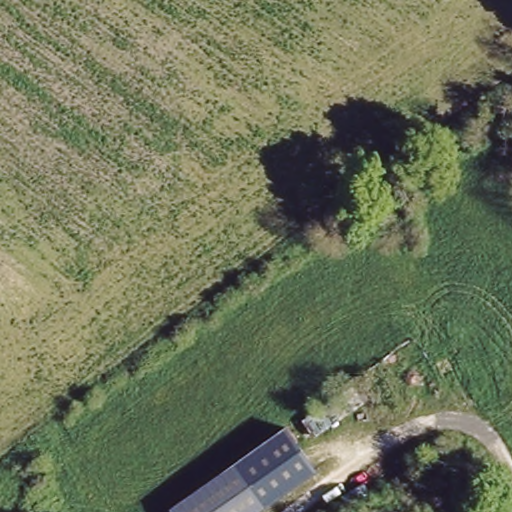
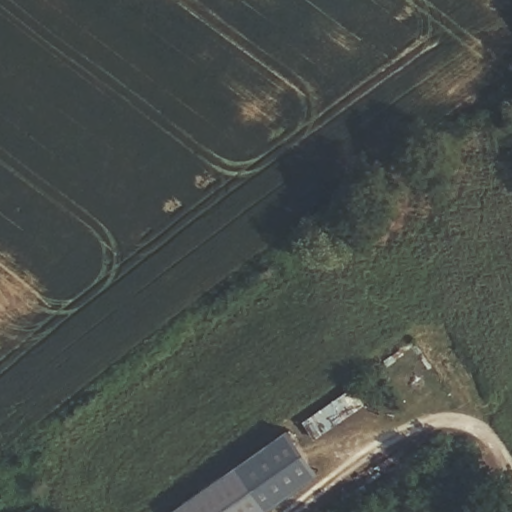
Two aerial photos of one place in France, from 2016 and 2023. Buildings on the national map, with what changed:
unchanged [(312,442),(299,422),(356,385),(370,402),(312,442)]
unchanged [(318,471),(259,512),(171,512),(169,509),(286,427),(318,471)]

